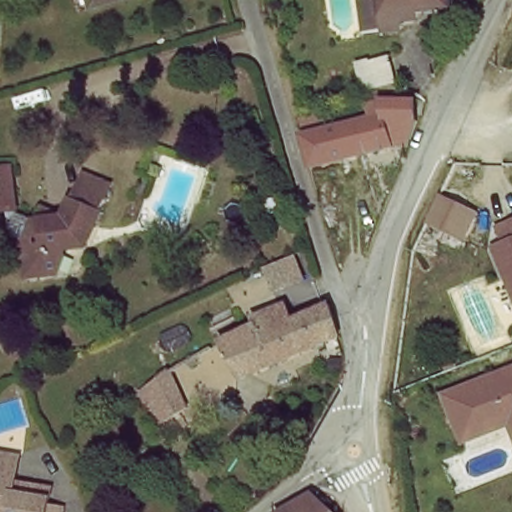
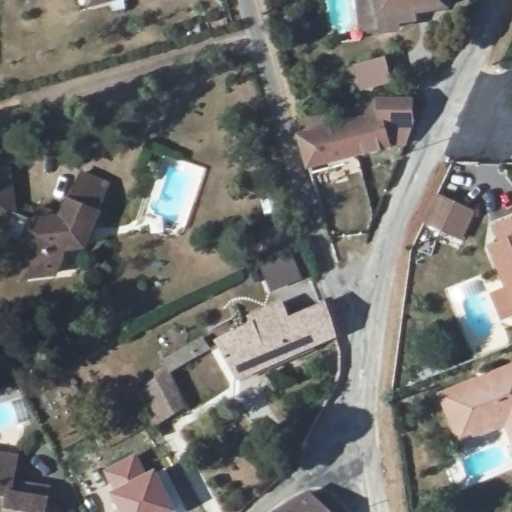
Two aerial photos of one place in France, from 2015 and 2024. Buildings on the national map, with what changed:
unchanged [(95,5),(93,0),(111,0),(95,5)]
unchanged [(411,12),(393,16),(392,14),(388,0),(408,0),(411,12)]
unchanged [(354,63),(389,55),(397,79),(361,89),(354,63)]
unchanged [(416,124),(392,125),(393,149),(309,167),(299,132),(364,112),(364,101),(377,96),(416,99),(416,124)]
unchanged [(58,247),(61,257),(55,271),(30,275),(28,256),(24,255),(21,241),(10,238),(6,209),(0,210),(0,167),(8,165),(14,207),(32,216),(39,204),(66,214),(79,186),(85,173),(110,184),(104,198),(94,222),(84,245),(70,246),(58,247)]
unchanged [(436,194),(476,212),(463,241),(424,222),(436,194)]
unchanged [(491,245),(511,237),(504,221),(512,219),(512,296),(491,245)]
unchanged [(260,268),(293,254),(304,281),(271,294),(260,268)]
unchanged [(249,331),(245,321),(275,307),(282,322),(319,305),(330,339),(326,340),(244,378),(226,343),(249,331)]
unchanged [(439,392),(449,389),(512,363),(512,438),(504,420),(459,439),(439,392)]
unchanged [(166,380),(181,410),(161,420),(146,390),(166,380)]
new [(175,512),(119,512),(108,491),(111,490),(101,468),(136,451),(146,471),(156,467),(178,511),(175,512)]
unchanged [(14,485),(49,492),(45,512),(0,512),(0,454),(18,458),(14,485)]
unchanged [(328,512),(275,512),(309,495),(328,512)]

